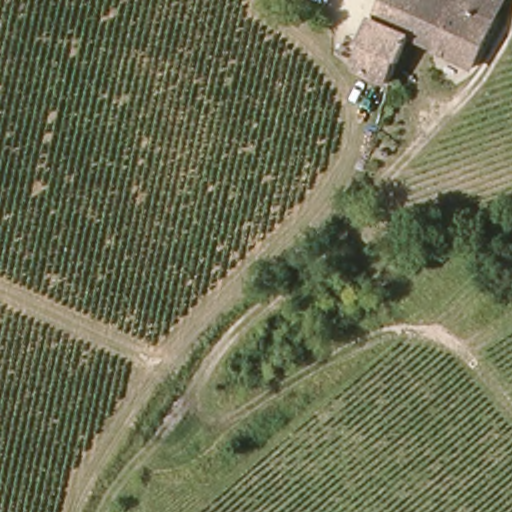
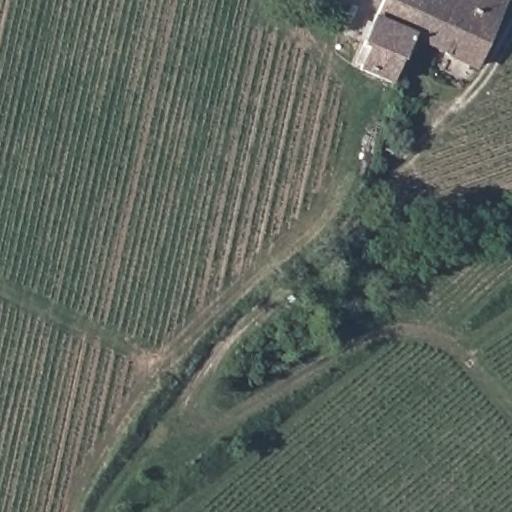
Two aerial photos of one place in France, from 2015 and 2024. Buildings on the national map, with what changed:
unchanged [(394,82),(390,90),(362,75),(370,53),(365,51),(386,0),(429,0),(410,44),(394,82)]
unchanged [(491,21),(473,67),(410,44),(429,0),(499,0),(491,21)]

